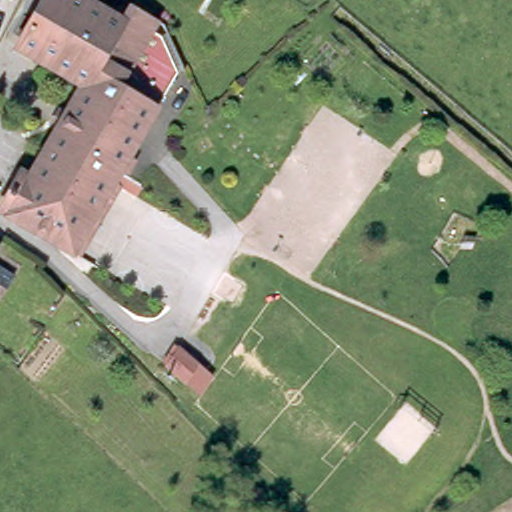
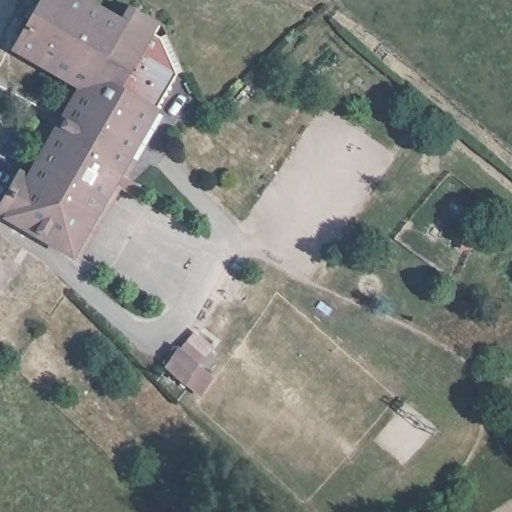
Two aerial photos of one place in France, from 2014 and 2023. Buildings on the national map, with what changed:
unchanged [(61,241),(57,247),(0,211),(0,190),(13,169),(22,174),(54,123),(47,120),(54,110),(60,113),(78,85),(15,48),(43,0),(84,0),(122,21),(130,5),(133,7),(137,9),(143,12),(148,15),(155,19),(150,27),(160,32),(174,65),(178,73),(159,107),(121,156),(127,160),(121,170),(114,167),(106,181),(112,185),(89,222),(72,250),(67,245),(61,240),(61,241)]
unchanged [(180,346),(215,376),(202,395),(163,365),(180,346)]

